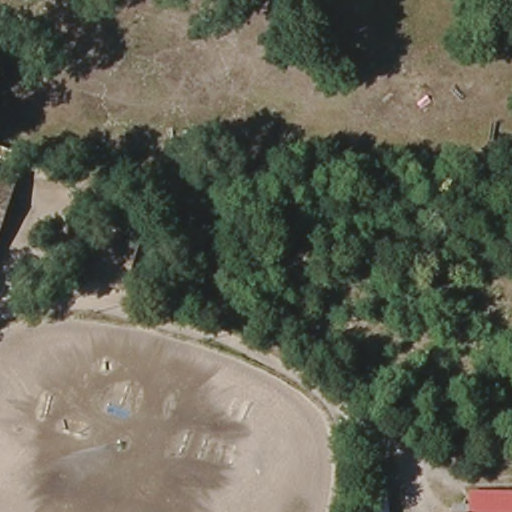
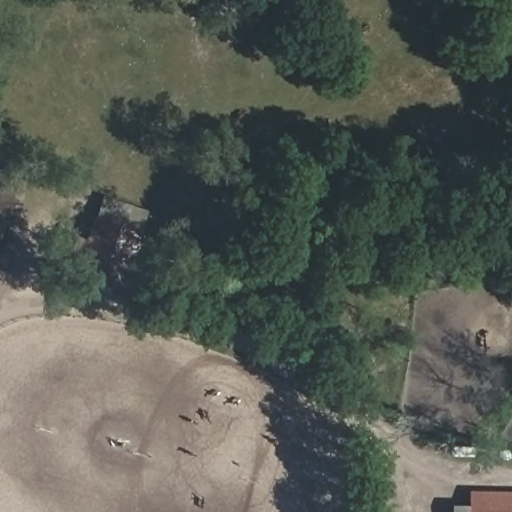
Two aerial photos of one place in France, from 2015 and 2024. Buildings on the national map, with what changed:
unchanged [(0,233),(0,152),(23,159),(0,233)]
unchanged [(77,271),(81,256),(94,216),(99,197),(111,200),(144,210),(137,229),(121,284),(77,271)]
unchanged [(468,505),(469,490),(512,491),(512,512),(451,512),(450,505),(468,505)]

